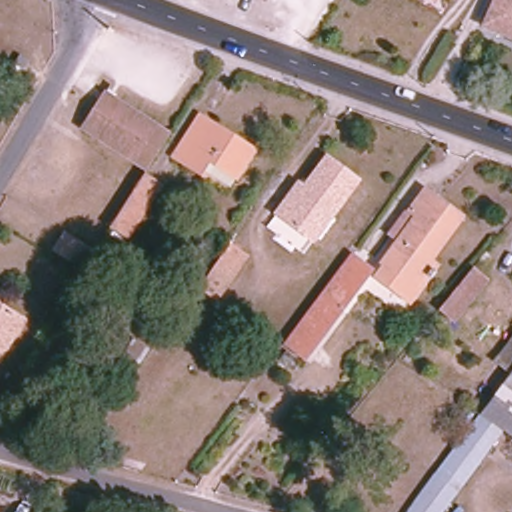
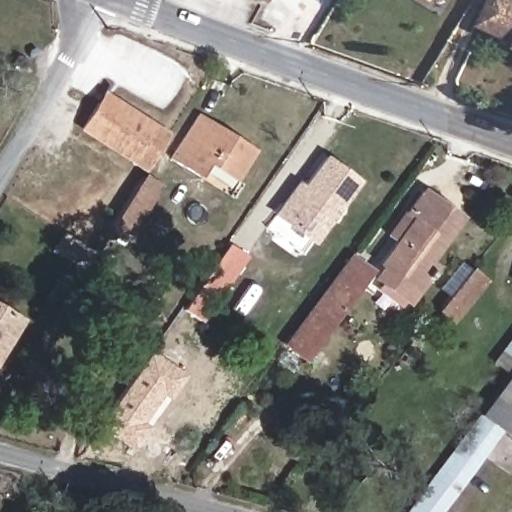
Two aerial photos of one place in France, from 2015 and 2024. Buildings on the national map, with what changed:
unchanged [(496,0),(512,0),(512,42),(481,29),(496,0)]
unchanged [(32,75),(23,71),(28,61),(36,67),(32,75)]
unchanged [(149,164),(144,172),(80,130),(97,104),(103,96),(116,104),(167,136),(163,142),(149,164)]
unchanged [(236,173),(196,145),(187,153),(172,142),(200,107),(253,147),(236,173)]
unchanged [(169,176),(136,225),(118,213),(144,172),(149,164),(169,176)]
unchanged [(309,230),(278,208),(302,176),(311,183),(323,166),(356,190),(342,208),(318,237),(309,230)]
unchanged [(377,266),(418,215),(410,206),(427,187),(466,217),(430,261),(425,257),(402,285),(377,266)]
unchanged [(50,249),(58,235),(92,256),(83,270),(50,249)]
unchanged [(213,311),(195,297),(229,249),(247,263),(213,311)]
unchanged [(351,254),(371,269),(303,357),(285,342),(351,254)]
unchanged [(488,285),(455,322),(441,311),(474,272),(488,285)]
unchanged [(0,364),(0,305),(27,321),(0,364)]
new [(143,422),(149,426),(132,448),(97,426),(151,351),(186,376),(171,400),(164,396),(143,422)]
unchanged [(489,448),(466,430),(512,371),(512,466),(489,448)]
unchanged [(466,430),(489,448),(440,512),(408,512),(466,430)]

